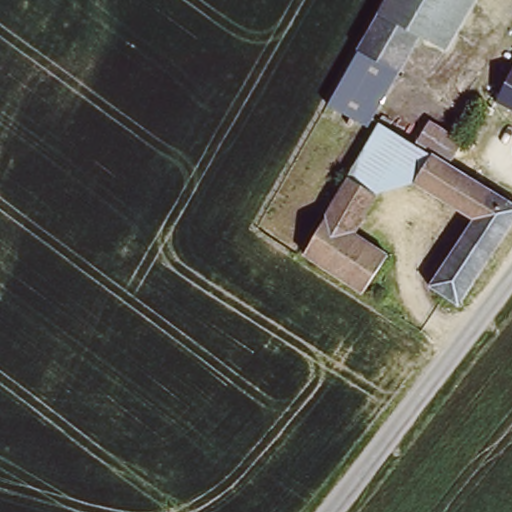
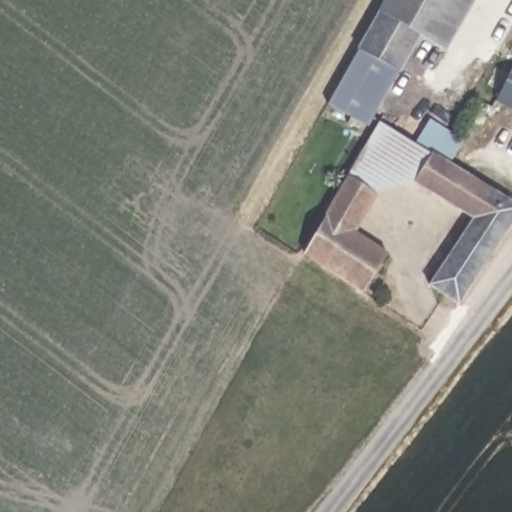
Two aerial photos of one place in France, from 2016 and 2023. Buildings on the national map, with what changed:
unchanged [(421,32),(400,68),(394,66),(367,121),(329,100),(385,0),(472,0),(446,44),(421,32)]
unchanged [(507,44),(512,47),(512,97),(485,81),(507,44)]
unchanged [(468,301),(468,302),(440,281),(481,217),(440,190),(424,180),(423,182),(385,189),(358,172),(392,119),(425,139),(437,118),(472,138),(467,146),(458,160),(493,182),(512,193),(512,237),(502,251),(468,301)]
unchanged [(385,189),(361,230),(335,212),(350,186),(358,172),(385,189)]
unchanged [(361,230),(394,252),(367,292),(311,251),(335,212),(361,230)]

